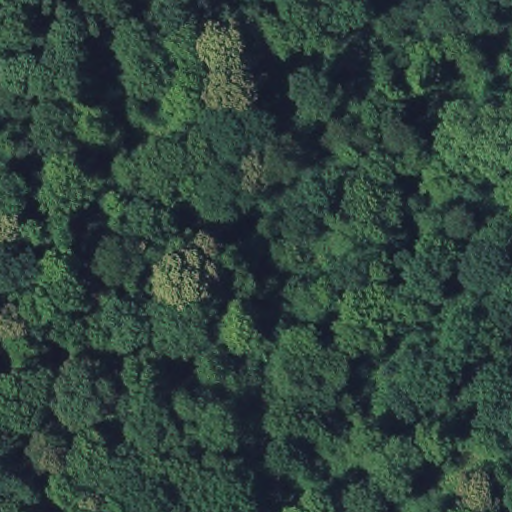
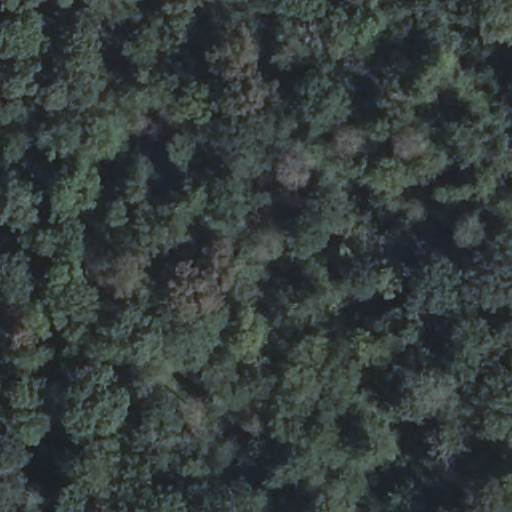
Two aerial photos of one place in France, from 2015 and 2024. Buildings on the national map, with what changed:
[]

